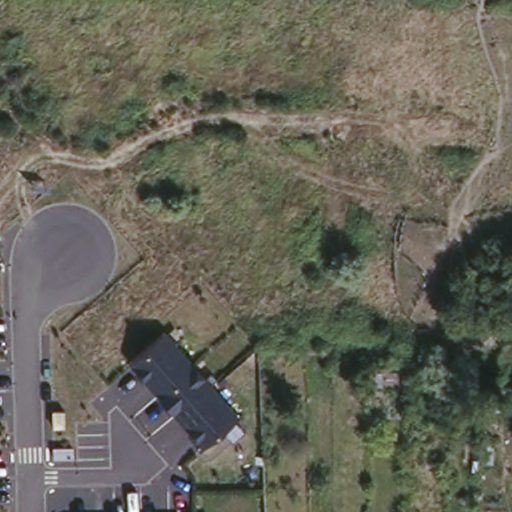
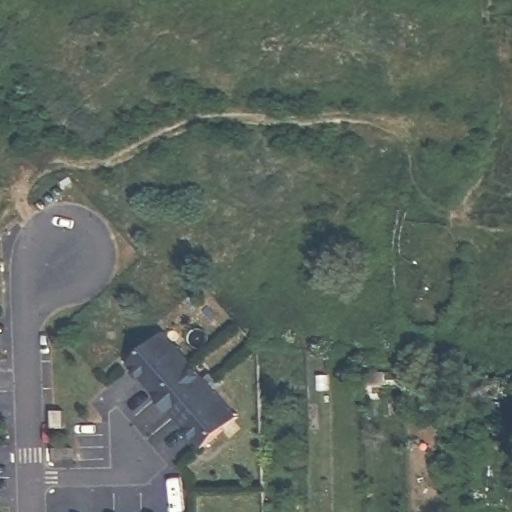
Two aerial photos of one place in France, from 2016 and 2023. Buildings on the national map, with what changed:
unchanged [(239,416),(204,448),(131,363),(167,333),(239,416)]

